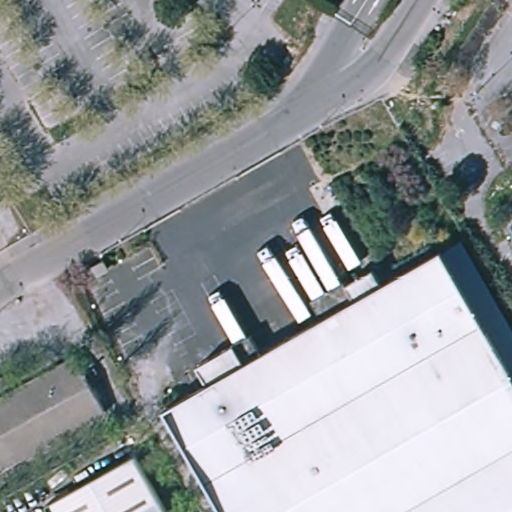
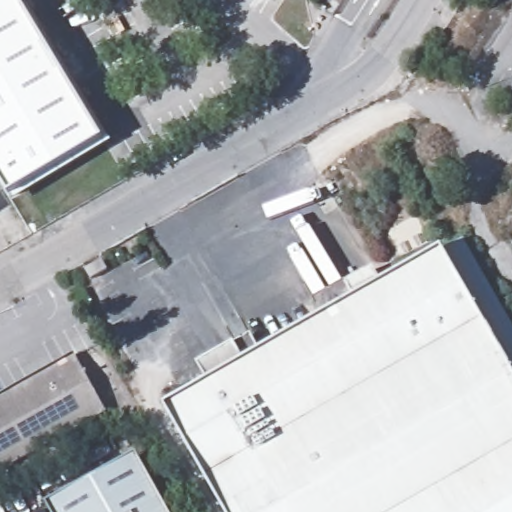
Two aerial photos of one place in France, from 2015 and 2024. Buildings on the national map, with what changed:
new [(0,0),(19,0),(104,141),(11,195),(0,178),(0,0)]
unchanged [(438,248),(455,236),(512,329),(512,369),(438,248)]
unchanged [(162,411),(205,386),(195,368),(231,348),(248,338),(257,354),(318,317),(308,298),(324,289),(339,279),(341,282),(366,265),(379,282),(437,246),(438,248),(512,369),(512,512),(223,512),(162,411)]
unchanged [(108,267),(93,276),(88,267),(104,258),(108,267)]
unchanged [(102,411),(0,469),(0,395),(70,355),(102,411)]
unchanged [(45,504),(132,455),(165,512),(49,512),(45,504)]

